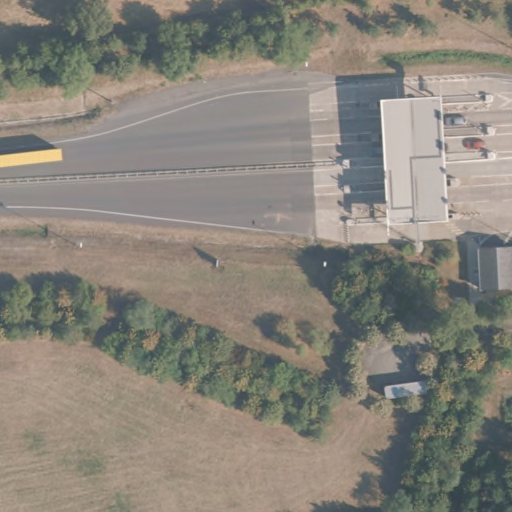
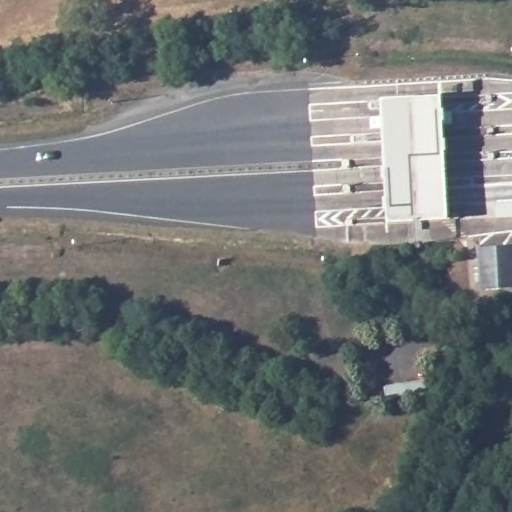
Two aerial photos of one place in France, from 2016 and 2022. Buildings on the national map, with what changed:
unchanged [(388,100),(434,99),(441,217),(395,219),(388,100)]
unchanged [(512,249),(512,288),(481,290),(480,249),(512,249)]

